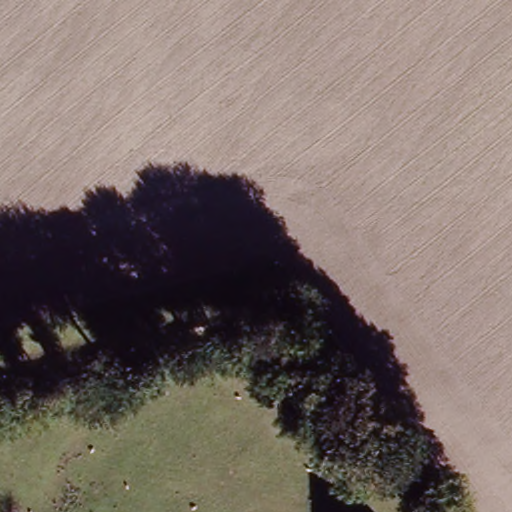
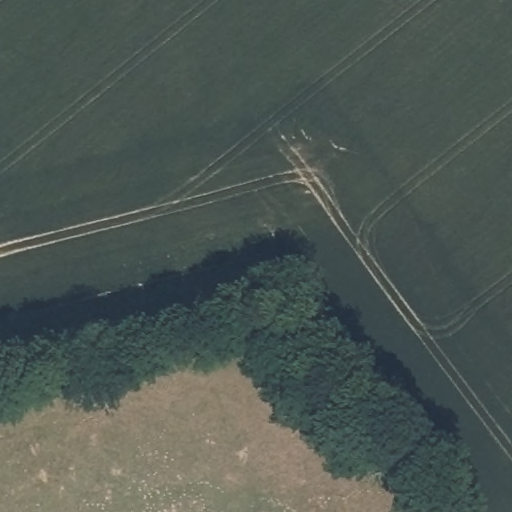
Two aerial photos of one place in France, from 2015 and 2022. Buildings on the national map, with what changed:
[]

